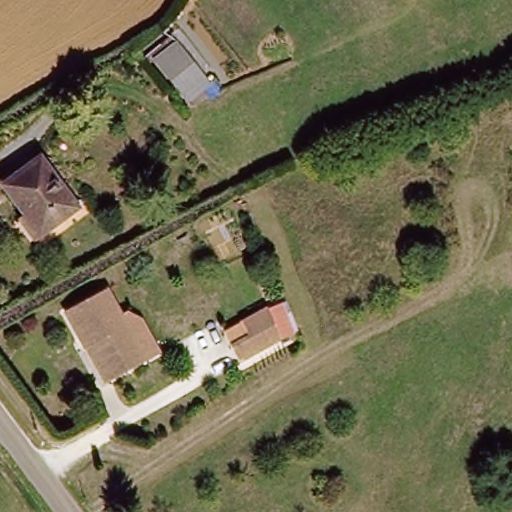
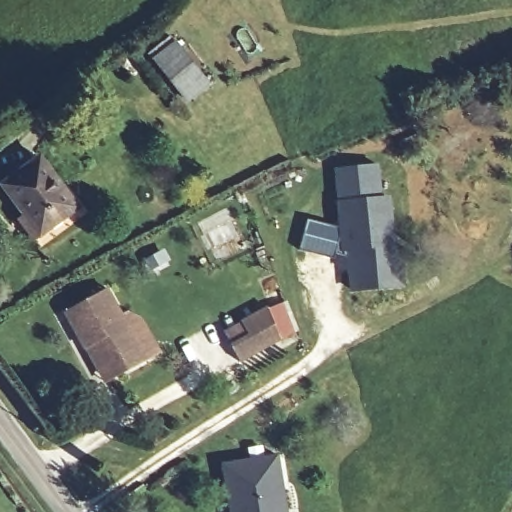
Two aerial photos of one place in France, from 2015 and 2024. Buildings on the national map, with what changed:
unchanged [(192,105),(189,100),(186,102),(150,56),(174,39),(206,81),(211,78),(218,84),(192,105)]
unchanged [(34,158),(70,203),(36,230),(0,185),(34,158)]
new [(396,247),(404,246),(408,284),(352,291),(351,272),(343,273),(338,202),(390,195),(396,247)]
unchanged [(79,345),(61,312),(100,289),(141,360),(108,378),(100,382),(79,345)]
unchanged [(278,338),(236,360),(226,341),(241,332),(234,321),(265,306),(278,338)]
new [(228,512),(221,463),(279,452),(289,512),(228,512)]

